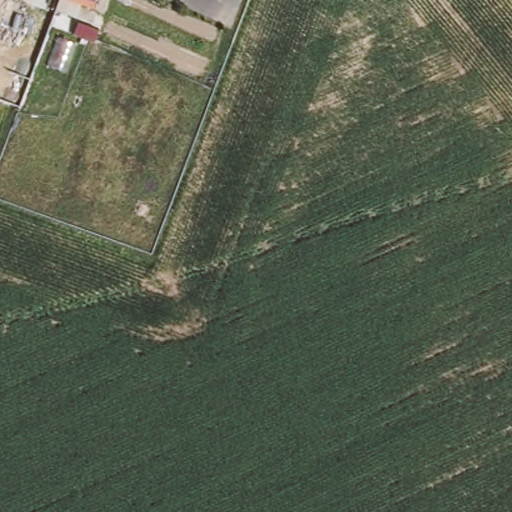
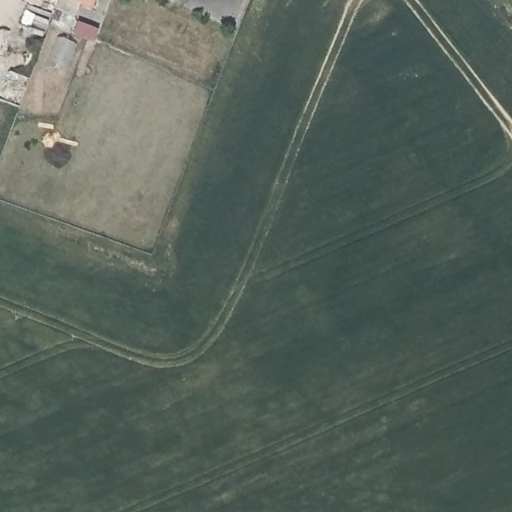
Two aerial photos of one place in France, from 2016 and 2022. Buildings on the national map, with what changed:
unchanged [(55,15),(61,0),(105,0),(101,10),(86,5),(80,22),(55,15)]

